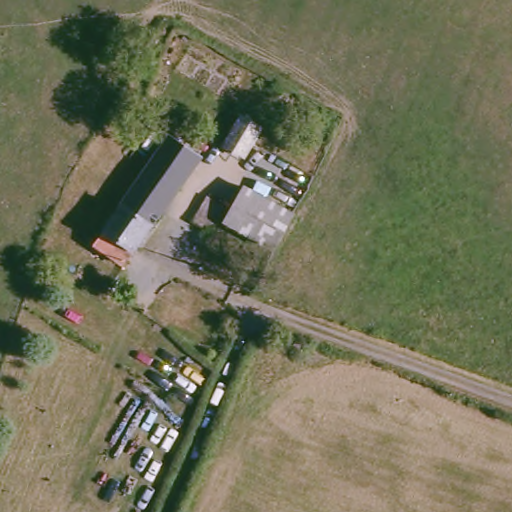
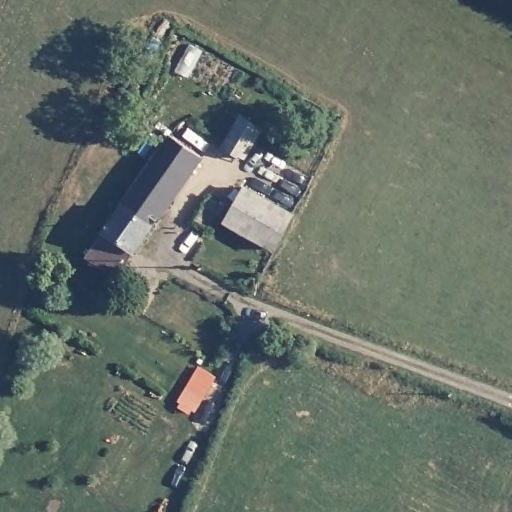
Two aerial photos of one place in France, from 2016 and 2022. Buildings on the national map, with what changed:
unchanged [(251,114),(271,128),(249,156),(228,142),(251,114)]
unchanged [(197,155),(127,259),(109,247),(103,255),(93,249),(170,136),(197,155)]
unchanged [(249,184),(257,189),(271,166),(282,176),(291,161),(320,178),(311,195),(296,217),(275,249),(227,222),(249,184)]

